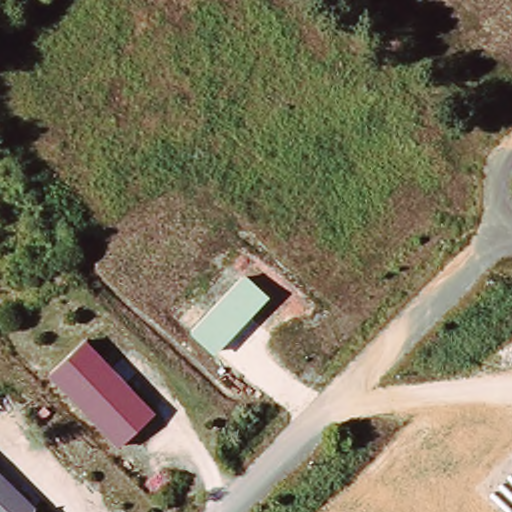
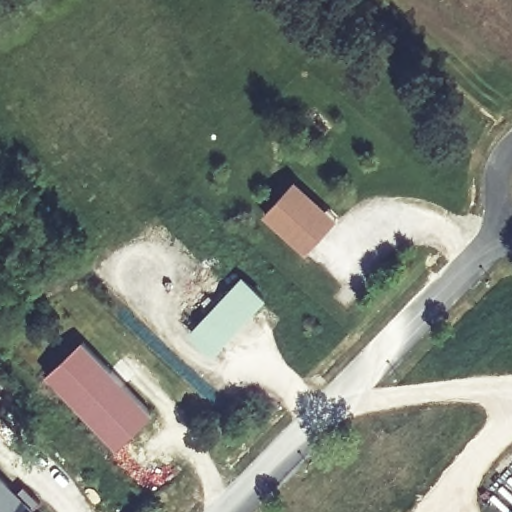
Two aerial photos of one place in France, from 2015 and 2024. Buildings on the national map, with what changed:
new [(339,219),(308,253),(263,215),(295,179),(339,219)]
unchanged [(268,297),(213,356),(190,333),(244,274),(268,297)]
unchanged [(49,375),(85,340),(155,413),(119,448),(49,375)]
unchanged [(35,505),(29,512),(0,512),(0,471),(35,505)]
unchanged [(29,512),(35,505),(43,512),(29,512)]

